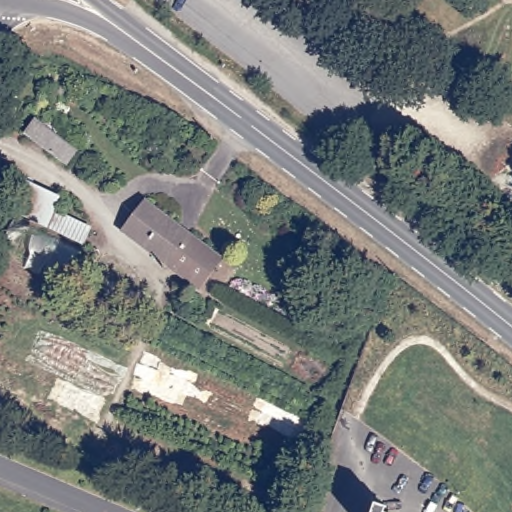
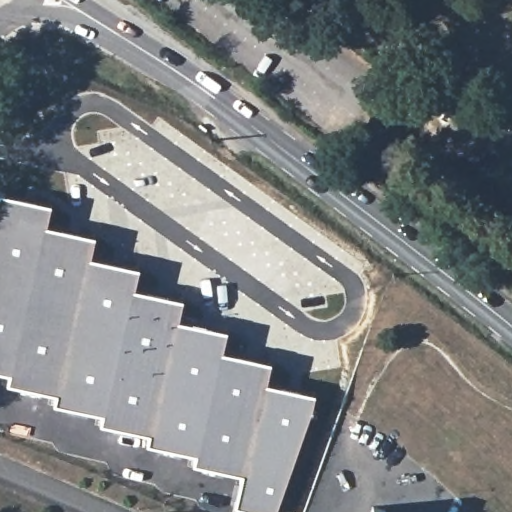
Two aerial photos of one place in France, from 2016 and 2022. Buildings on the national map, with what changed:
demolished [(32,119),(75,152),(64,167),(21,135),(32,119)]
new [(40,214),(79,225),(76,244),(133,266),(135,277),(166,286),(172,312),(211,321),(211,338),(270,355),(268,382),(316,397),(286,512),(216,512),(218,486),(0,398),(0,186),(37,199),(40,214)]
demolished [(217,258),(194,289),(120,231),(144,201),(177,227),(217,258)]
demolished [(81,253),(68,292),(0,262),(0,244),(7,223),(81,253)]
demolished [(83,445),(0,407),(0,368),(98,411),(83,445)]
unchanged [(385,510),(384,512),(371,512),(373,506),(385,510)]

